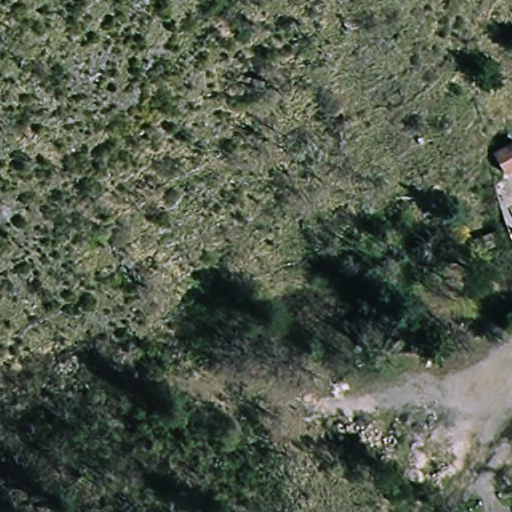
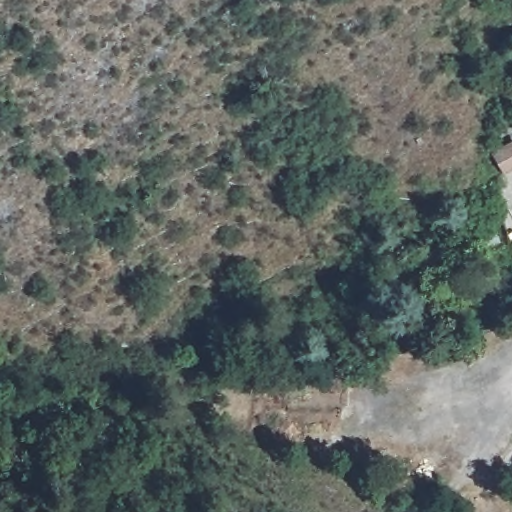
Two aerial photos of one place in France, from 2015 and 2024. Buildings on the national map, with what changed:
unchanged [(502,174),(499,159),(512,153),(512,170),(502,174)]

